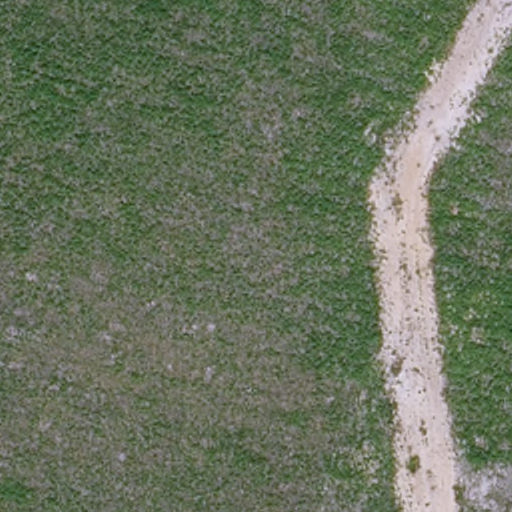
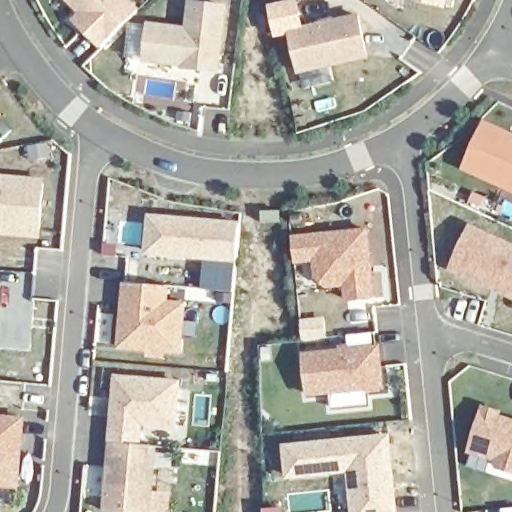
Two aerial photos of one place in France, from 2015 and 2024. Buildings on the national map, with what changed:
new [(71,19),(78,12),(67,0),(132,0),(140,9),(100,47),(71,19)]
new [(181,69),(181,65),(143,61),(147,22),(186,26),(188,0),(228,4),(220,71),(181,69)]
new [(359,14),(369,58),(297,74),(290,35),(275,37),(268,4),(289,0),(297,0),(304,25),(359,14)]
new [(448,7),(413,0),(450,0),(448,7)]
new [(0,111),(2,114),(0,116),(0,111)]
new [(462,169),(484,120),(512,133),(512,191),(462,169)]
new [(42,239),(0,236),(0,174),(46,179),(42,239)]
new [(146,255),(148,213),(240,221),(237,264),(146,255)]
new [(380,287),(353,290),(351,275),(334,277),(323,268),(321,256),(301,258),(298,228),(318,226),(373,220),(380,287)]
new [(450,269),(470,225),(512,243),(512,298),(450,269)]
new [(182,354),(118,348),(123,283),(170,285),(169,301),(185,302),(182,354)]
new [(385,337),(389,377),(314,385),(311,345),(385,337)]
new [(180,380),(176,427),(142,425),(141,445),(158,447),(154,491),(171,493),(170,512),(103,512),(114,375),(180,380)]
new [(489,397),(504,401),(503,405),(512,408),(512,459),(505,456),(501,448),(475,440),(489,397)]
new [(0,415),(25,416),(20,488),(0,486),(0,415)]
new [(392,433),(400,512),(352,512),(348,474),(287,480),(283,445),(392,433)]

